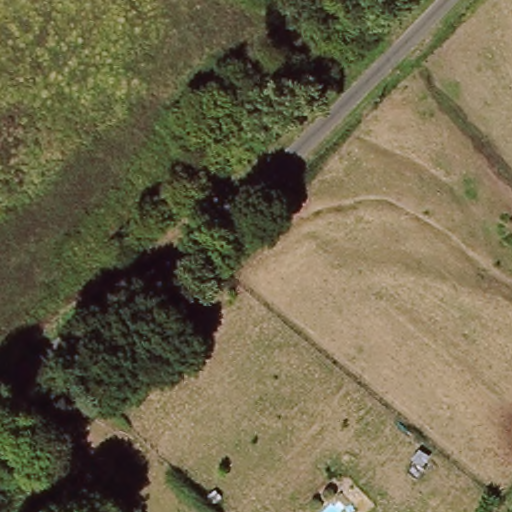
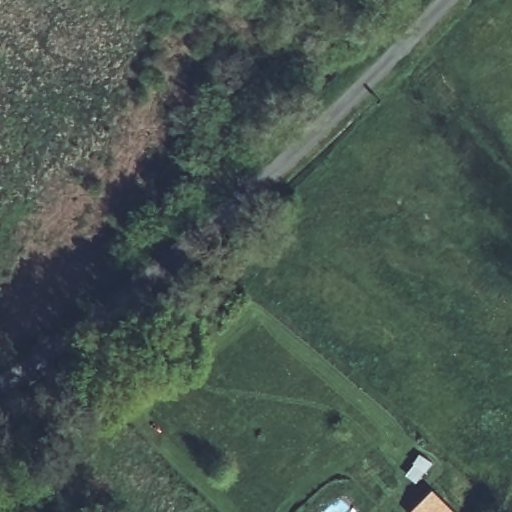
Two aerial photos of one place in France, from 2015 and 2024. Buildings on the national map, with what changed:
new [(457,512),(410,512),(434,489),(457,512)]

